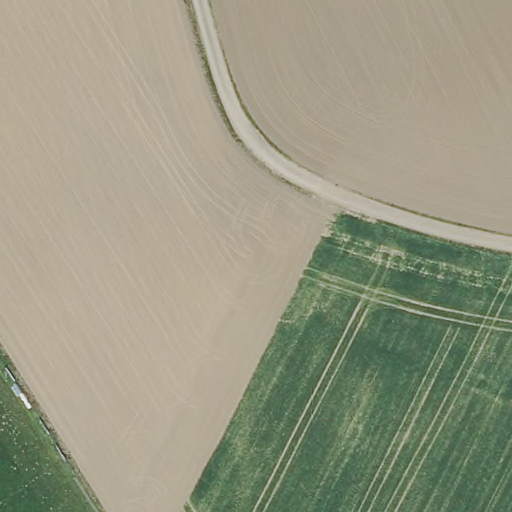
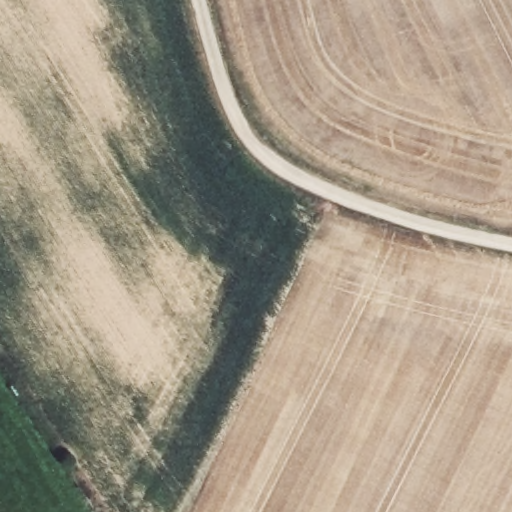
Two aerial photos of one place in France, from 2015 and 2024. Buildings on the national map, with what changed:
[]

